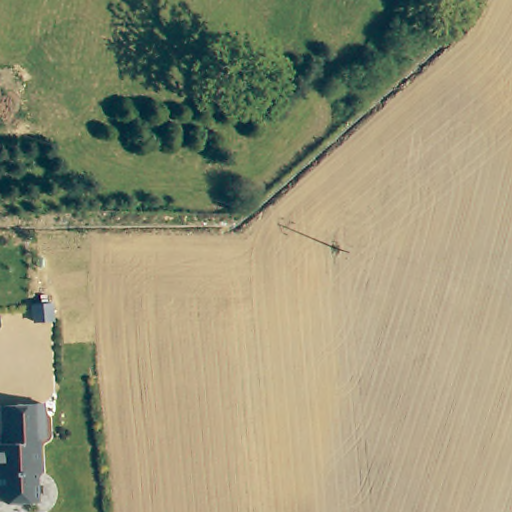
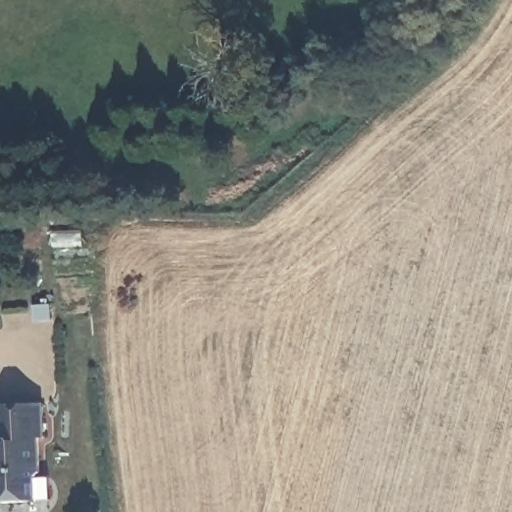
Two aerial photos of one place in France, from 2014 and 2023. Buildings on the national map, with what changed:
unchanged [(6,428),(6,421),(24,420),(49,420),(49,454),(43,454),(44,487),(39,492),(39,512),(1,512),(0,511),(0,456),(6,456),(6,428)]

